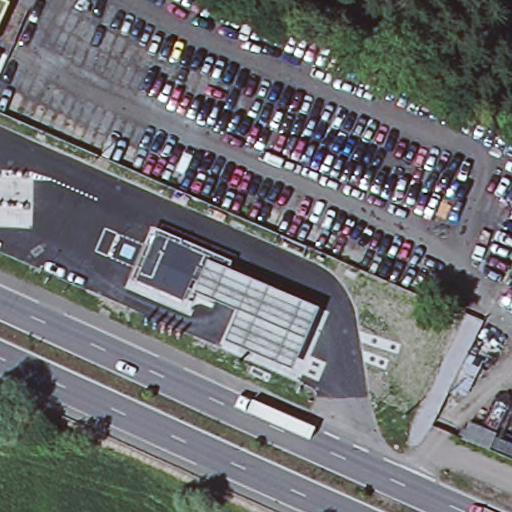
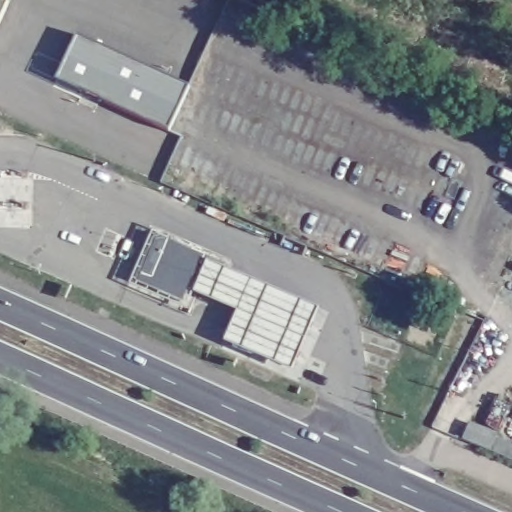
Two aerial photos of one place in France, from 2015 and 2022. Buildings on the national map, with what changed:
unchanged [(0,21),(0,0),(6,0),(9,1),(0,21)]
new [(186,89),(168,131),(57,81),(76,38),(186,89)]
unchanged [(151,225),(207,249),(181,303),(130,281),(151,225)]
unchanged [(206,258),(315,308),(289,370),(223,341),(235,311),(196,292),(206,258)]
demolished [(440,334),(422,373),(383,355),(400,316),(440,334)]

